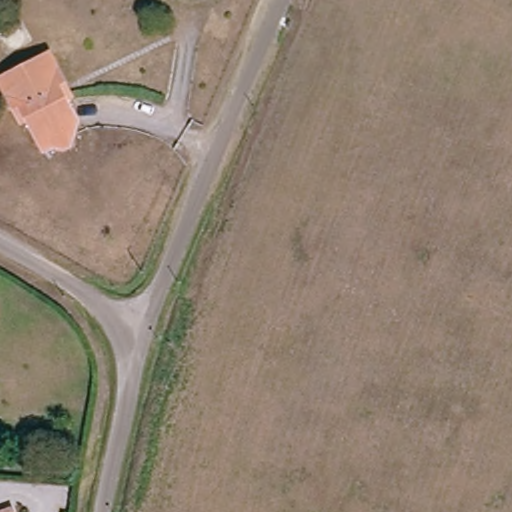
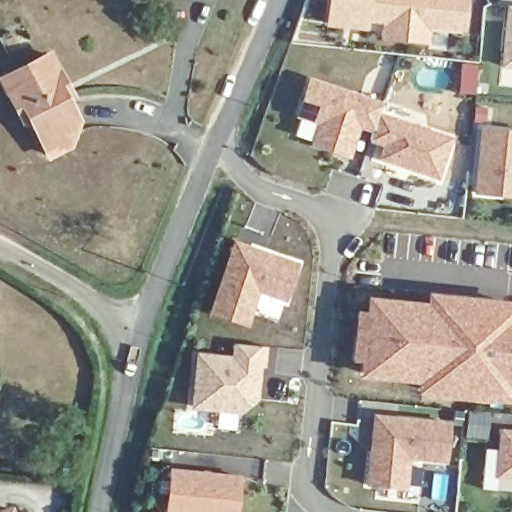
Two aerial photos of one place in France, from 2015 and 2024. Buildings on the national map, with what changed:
new [(463,29),(429,25),(427,42),(384,37),(386,22),(366,19),(365,28),(328,25),(330,0),(466,0),(463,29)]
new [(512,10),(512,69),(503,68),(508,10),(512,10)]
unchanged [(64,93),(83,128),(74,152),(54,162),(28,112),(21,115),(5,86),(54,61),(69,90),(64,93)]
new [(384,102),(381,112),(454,137),(438,181),(377,160),(381,146),(369,142),(373,133),(360,130),(350,160),(309,146),(317,126),(294,117),(310,77),(384,102)]
new [(475,195),(482,130),(512,133),(512,198),(475,195)]
new [(268,256),(297,266),(285,302),(257,292),(245,327),(210,314),(234,245),(250,250),(268,256)]
new [(367,311),(367,297),(426,302),(427,292),(512,301),(512,403),(490,401),(490,402),(436,398),(436,395),(417,394),(417,382),(358,377),(360,362),(351,361),(357,310),(367,311)]
new [(265,348),(263,366),(259,365),(257,381),(251,380),(249,392),(255,398),(238,412),(193,408),(198,357),(234,361),(235,346),(265,348)]
new [(489,415),(486,442),(463,441),(466,412),(489,415)]
new [(373,436),(374,418),(449,426),(445,463),(408,460),(404,491),(367,487),(371,454),(373,436)]
new [(498,477),(502,434),(512,435),(512,479),(498,477)]
new [(239,512),(166,512),(170,468),(243,476),(239,512)]

